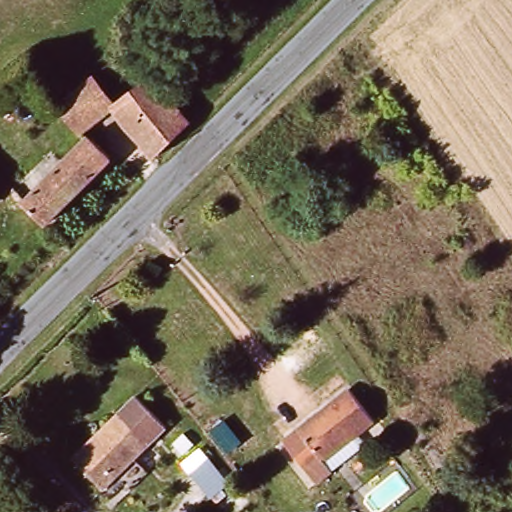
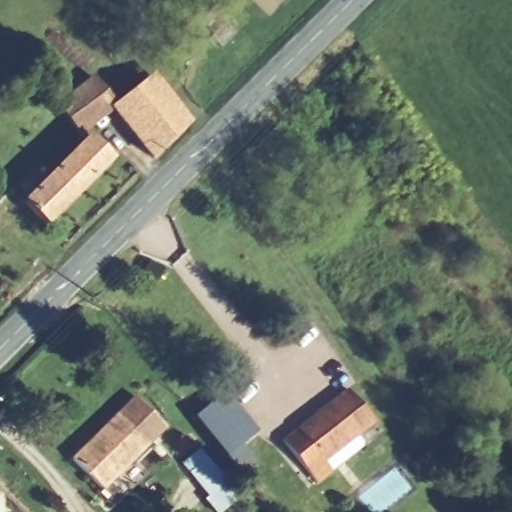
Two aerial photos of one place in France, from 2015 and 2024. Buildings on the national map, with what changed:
unchanged [(189,118),(151,156),(102,108),(141,71),(145,74),(189,118)]
unchanged [(68,140),(47,119),(81,86),(102,108),(68,140)]
unchanged [(21,201),(82,139),(85,137),(106,158),(44,223),(21,201)]
unchanged [(361,447),(310,483),(279,439),(347,390),(373,427),(357,439),(361,447)]
new [(226,391),(259,431),(225,457),(193,416),(226,391)]
unchanged [(91,498),(64,467),(131,407),(157,436),(91,498)]
unchanged [(174,433),(179,429),(185,423),(195,434),(188,440),(184,445),(174,433)]
unchanged [(201,455),(192,445),(201,437),(237,478),(229,486),(221,493),(193,462),(201,455)]

